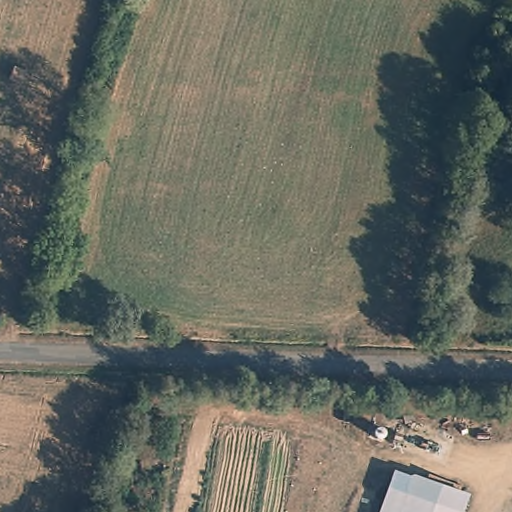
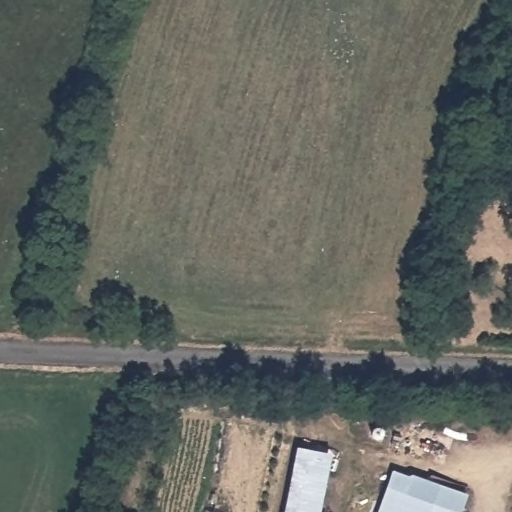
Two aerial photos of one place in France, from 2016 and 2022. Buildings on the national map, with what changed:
new [(333,452),(320,512),(289,512),(304,446),(333,452)]
unchanged [(383,512),(393,487),(458,512),(383,512)]

